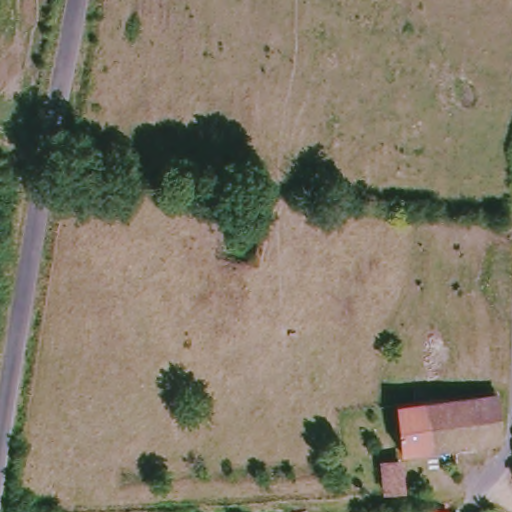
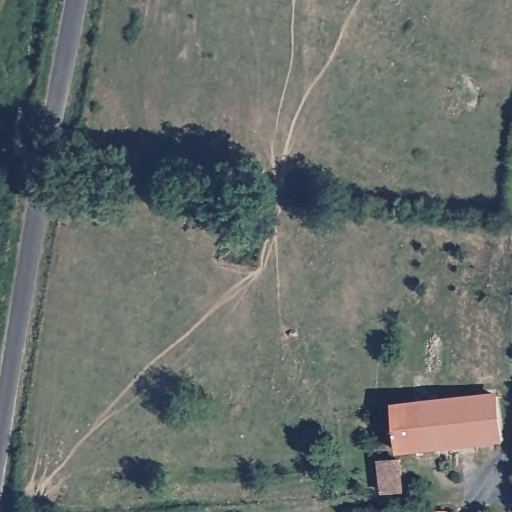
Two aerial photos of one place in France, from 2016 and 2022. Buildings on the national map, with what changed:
unchanged [(471,393),(492,390),(502,438),(477,442),(471,393)]
unchanged [(471,393),(477,442),(402,454),(397,407),(471,393)]
unchanged [(415,490),(413,490),(401,492),(378,494),(374,462),(394,459),(398,476),(412,475),(415,490)]

